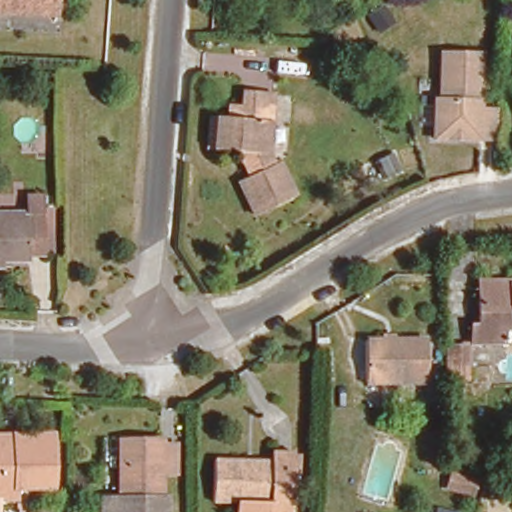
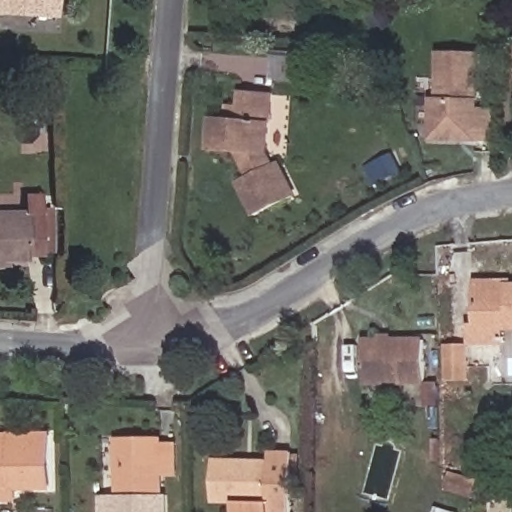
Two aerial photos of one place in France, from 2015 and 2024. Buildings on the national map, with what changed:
unchanged [(0,15),(0,0),(54,0),(52,19),(0,15)]
unchanged [(435,141),(435,101),(438,102),(441,102),(441,55),(481,55),(480,111),(497,111),(497,142),(480,141),(466,141),(448,141),(435,141)]
unchanged [(272,163),(275,161),(290,189),(254,208),(239,177),(249,171),(241,154),(216,154),(217,119),(227,119),(227,104),(238,104),(238,89),(262,90),(262,144),(272,163)]
unchanged [(52,200),(53,248),(38,249),(38,254),(10,254),(10,262),(0,262),(0,210),(34,210),(33,200),(52,200)]
unchanged [(498,338),(471,338),(471,323),(477,323),(476,284),(512,283),(512,320),(498,320),(498,338)]
unchanged [(359,383),(359,339),(415,339),(416,383),(359,383)]
unchanged [(472,341),(472,377),(438,377),(438,341),(472,341)]
unchanged [(18,428),(55,429),(53,483),(17,482),(16,494),(0,493),(0,427),(18,428)]
unchanged [(164,494),(164,512),(100,512),(100,491),(117,492),(118,435),(162,436),(178,437),(177,471),(160,471),(159,494),(164,494)]
unchanged [(272,512),(248,512),(248,496),(193,496),(193,456),(250,455),(249,444),(272,446),(272,512)]

